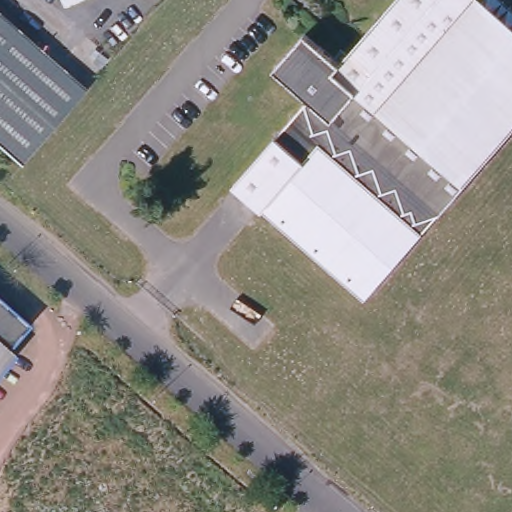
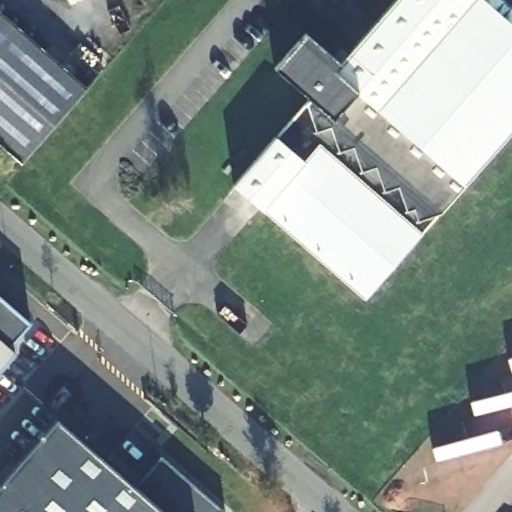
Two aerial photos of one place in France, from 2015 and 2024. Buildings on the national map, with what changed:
unchanged [(230,180),(304,102),(269,70),(302,35),(334,65),(396,0),(472,0),(476,4),(480,0),(503,0),(512,9),(512,29),(507,34),(512,38),(512,124),(352,296),(230,180)]
unchanged [(0,12),(87,89),(57,122),(21,165),(0,147),(0,12)]
unchanged [(7,355),(12,358),(0,371),(0,299),(32,326),(7,355)]
new [(160,456),(222,511),(222,512),(0,512),(0,484),(56,420),(132,486),(160,456)]

